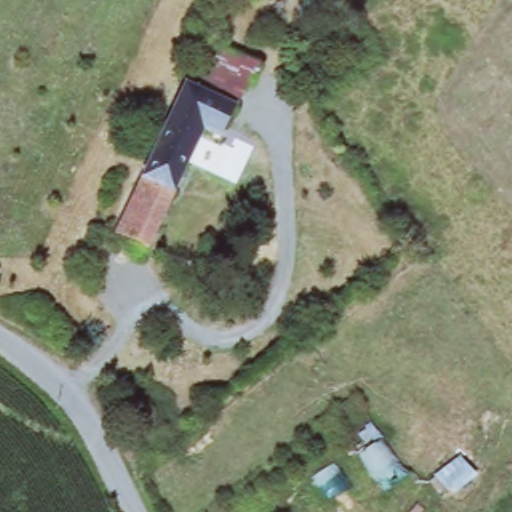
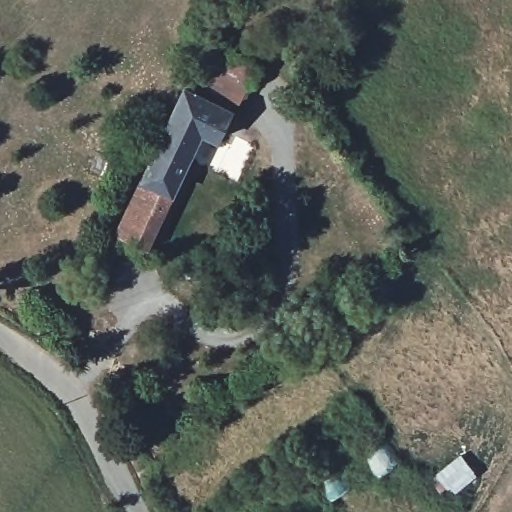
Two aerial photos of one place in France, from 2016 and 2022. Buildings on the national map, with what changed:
unchanged [(121,237),(147,181),(191,88),(209,44),(265,62),(243,114),(229,144),(210,135),(182,195),(169,222),(155,253),(121,237)]

